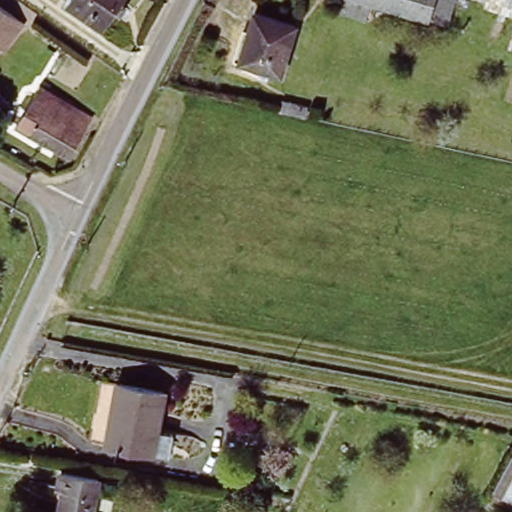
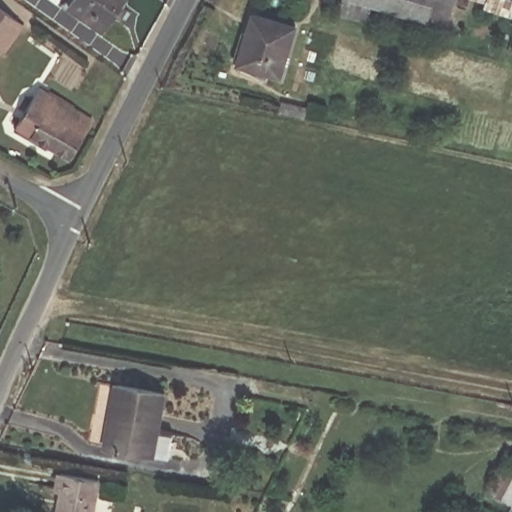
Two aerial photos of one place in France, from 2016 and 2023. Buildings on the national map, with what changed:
unchanged [(71,6),(75,0),(132,0),(109,33),(106,37),(68,10),(71,6)]
unchanged [(332,9),(335,0),(457,0),(448,29),(372,5),(367,22),(366,22),(332,9)]
unchanged [(506,16),(493,47),(487,44),(500,12),(485,7),(486,2),(480,0),(512,0),(512,15),(511,18),(506,16)]
unchanged [(253,9),(295,20),(293,25),(279,73),(238,60),(251,15),(253,9)]
unchanged [(0,49),(0,10),(18,23),(8,37),(0,49)]
unchanged [(93,115),(70,156),(28,134),(13,126),(31,94),(36,84),(93,115)]
unchanged [(289,95),(309,100),(304,119),(284,115),(289,95)]
unchanged [(115,384),(163,395),(157,434),(172,437),(168,459),(103,447),(115,384)]
unchanged [(66,487),(61,486),(65,470),(100,477),(96,512),(62,512),(66,487)]
unchanged [(512,503),(499,496),(512,470),(512,503)]

